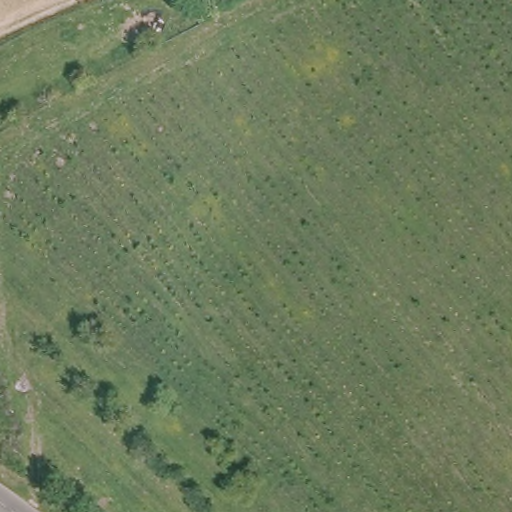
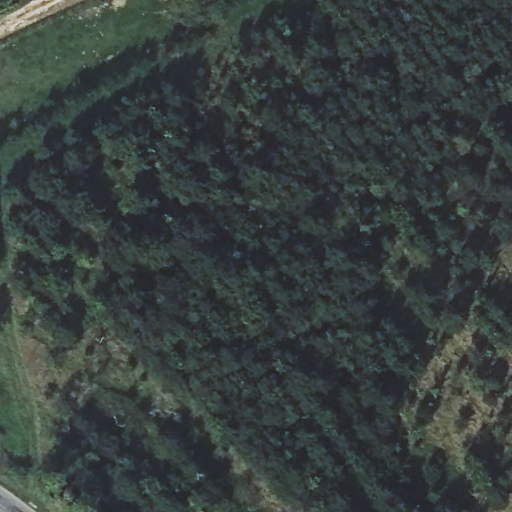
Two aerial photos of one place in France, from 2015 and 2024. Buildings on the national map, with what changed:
[]

